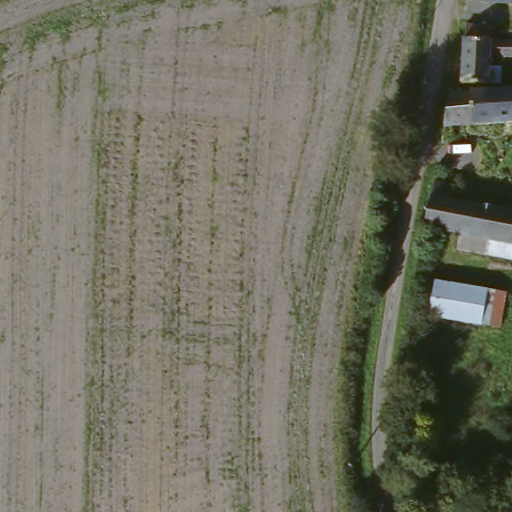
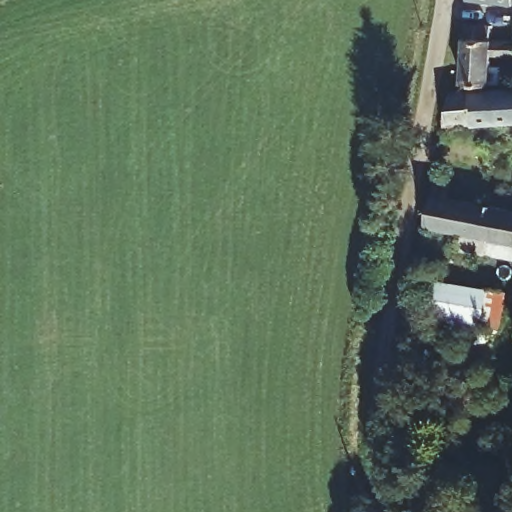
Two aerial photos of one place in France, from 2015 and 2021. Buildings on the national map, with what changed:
unchanged [(500,11),(498,15),(458,0),(512,0),(512,8),(509,15),(500,11)]
unchanged [(506,90),(458,91),(460,52),(461,38),(484,40),(485,53),(512,54),(512,69),(484,70),(484,77),(506,79),(506,90)]
unchanged [(439,135),(446,100),(458,100),(512,95),(512,130),(439,135)]
unchanged [(458,258),(461,243),(426,234),(438,169),(453,172),(448,205),(512,221),(512,272),(458,258)]
unchanged [(424,323),(428,288),(470,293),(464,329),(424,323)]
unchanged [(503,298),(498,334),(464,329),(470,293),(503,298)]

